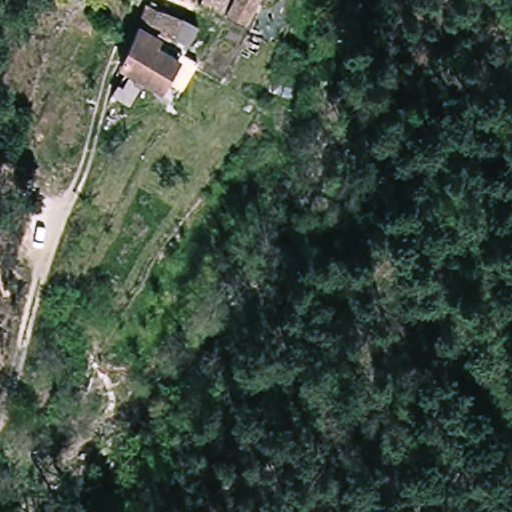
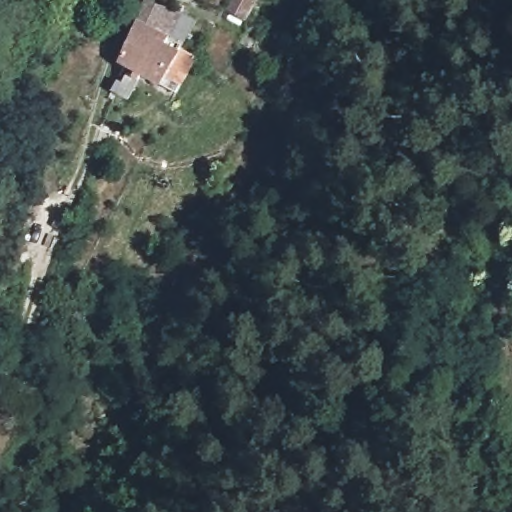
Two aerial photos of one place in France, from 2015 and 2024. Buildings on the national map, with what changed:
unchanged [(195,21),(185,44),(155,27),(153,32),(137,25),(147,0),(195,21)]
unchanged [(234,0),(259,0),(258,2),(252,16),(230,9),(234,0)]
unchanged [(162,87),(143,77),(132,100),(117,93),(128,69),(120,65),(137,25),(153,32),(152,35),(156,37),(153,45),(177,56),(195,65),(179,97),(162,87)]

